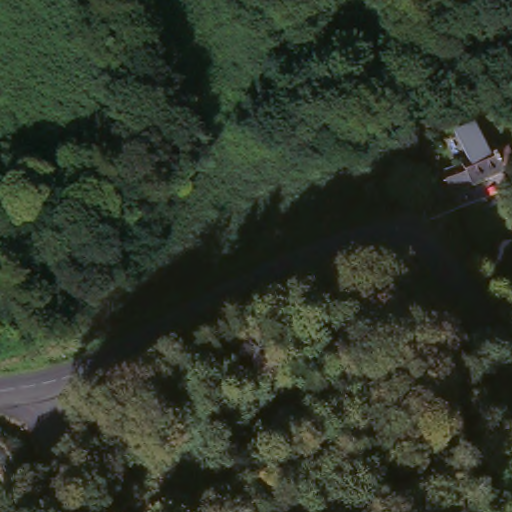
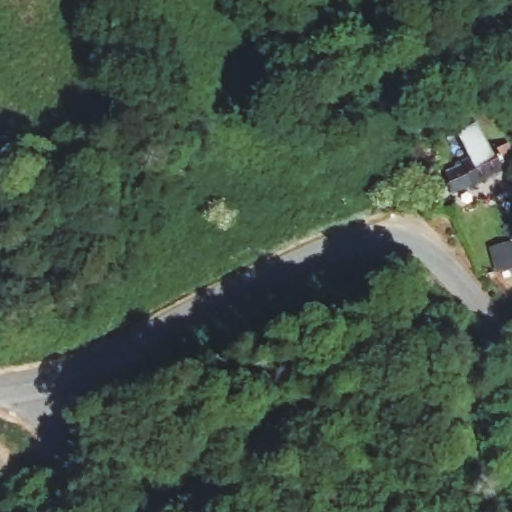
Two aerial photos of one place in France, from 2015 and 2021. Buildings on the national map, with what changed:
unchanged [(487,156),(492,154),(496,162),(508,156),(512,166),(512,171),(503,176),(504,177),(450,202),(440,181),(459,172),(458,170),(466,166),(454,140),(474,130),(487,156)]
unchanged [(430,327),(407,293),(429,277),(453,311),(447,315),(452,322),(457,329),(445,337),(434,323),(430,327)]

